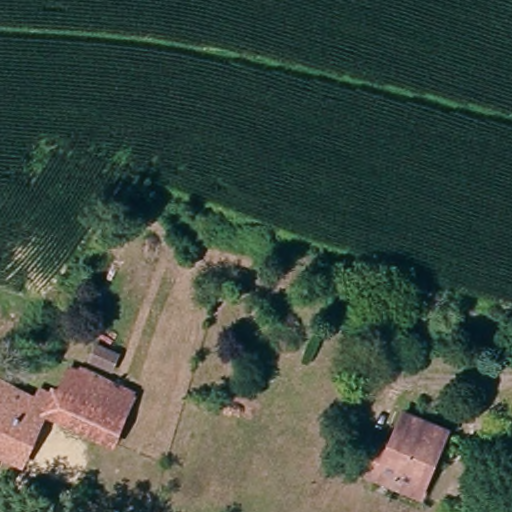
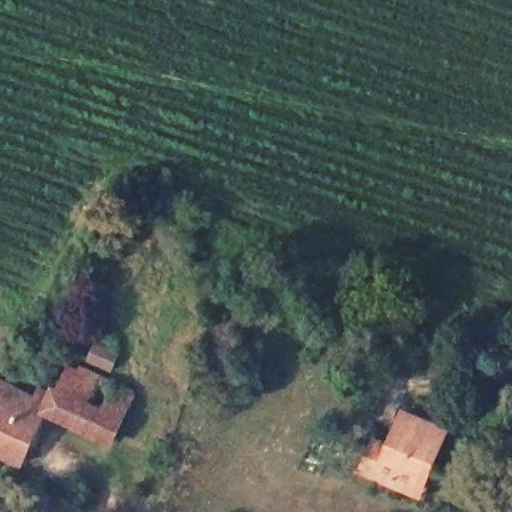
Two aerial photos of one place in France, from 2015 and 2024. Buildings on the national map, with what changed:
unchanged [(93,345),(117,357),(109,374),(85,362),(93,345)]
unchanged [(106,444),(44,415),(18,462),(13,461),(0,454),(0,372),(2,370),(21,381),(24,376),(33,380),(23,397),(31,402),(38,391),(45,395),(49,389),(56,393),(69,372),(129,400),(106,444)]
unchanged [(406,489),(410,482),(377,464),(373,472),(358,464),(375,433),(389,441),(408,407),(450,431),(441,448),(416,494),(406,489)]
unchanged [(84,503),(82,512),(75,512),(57,508),(59,497),(84,503)]

